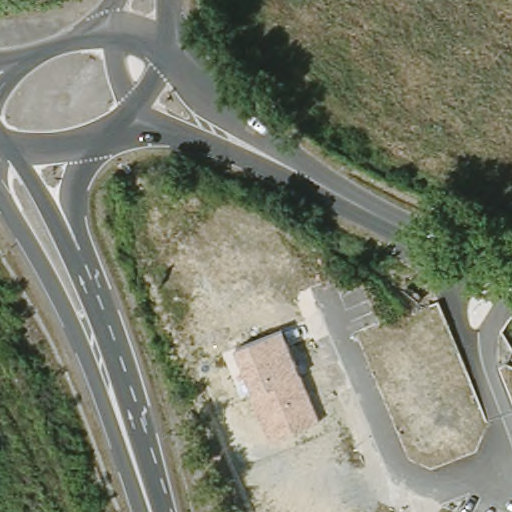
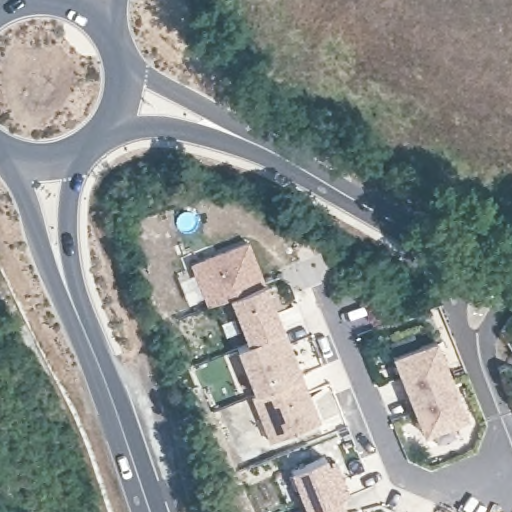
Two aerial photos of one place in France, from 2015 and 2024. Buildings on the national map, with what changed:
new [(265,282),(284,327),(247,342),(230,296),(207,305),(190,262),(246,239),(265,282)]
unchanged [(235,347),(284,327),(321,422),(270,441),(235,347)]
new [(450,377),(408,394),(392,355),(386,341),(416,329),(422,343),(434,338),(450,377)]
new [(429,447),(423,433),(408,394),(450,377),(465,416),(454,420),(460,434),(429,447)]
new [(325,455),(330,467),(338,462),(348,494),(339,499),(310,512),(308,512),(289,470),(325,455)]
demolished [(425,512),(425,511),(424,512),(379,512),(393,493),(405,476),(413,466),(471,506),(468,512),(425,512)]
new [(310,512),(339,499),(345,512),(310,512)]

